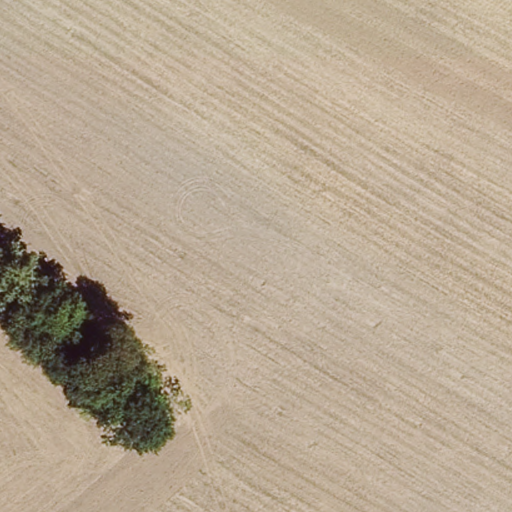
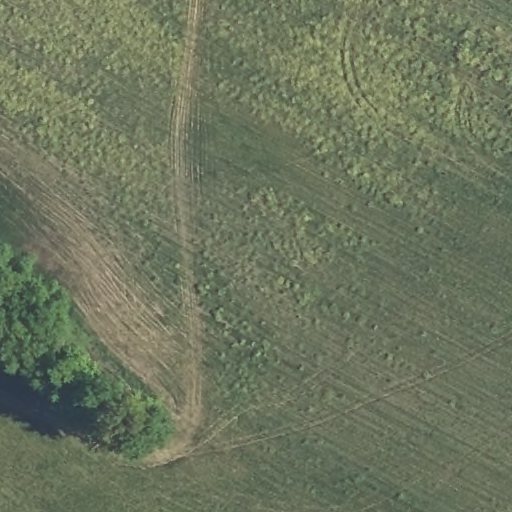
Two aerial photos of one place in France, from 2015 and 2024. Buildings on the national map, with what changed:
[]

